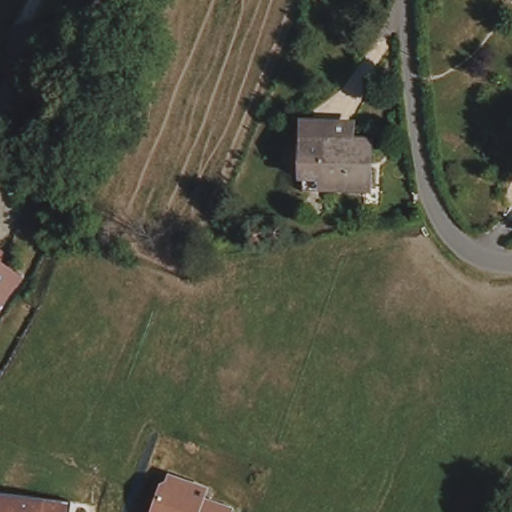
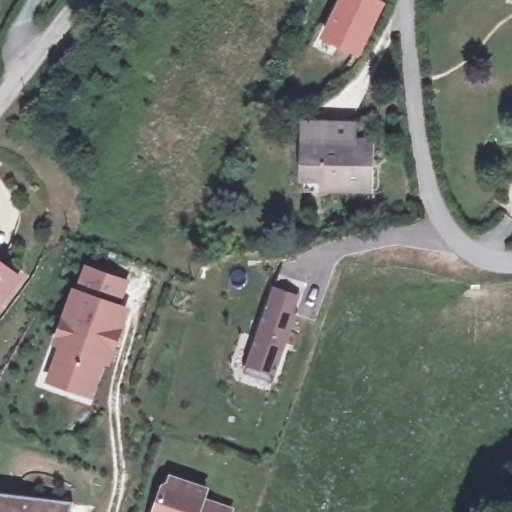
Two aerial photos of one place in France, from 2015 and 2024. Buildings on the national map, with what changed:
new [(386,3),(360,56),(320,37),(339,0),(379,0),(386,3)]
unchanged [(366,190),(328,188),(328,195),(304,194),(306,147),(308,128),(354,131),(354,148),(368,148),(366,190)]
unchanged [(0,260),(0,258),(1,259),(0,260)]
new [(130,281),(121,305),(129,309),(109,365),(106,364),(93,399),(46,382),(58,348),(51,345),(72,287),(78,290),(85,265),(130,281)]
unchanged [(0,270),(15,281),(0,302),(0,270)]
new [(301,295),(274,381),(245,371),(273,285),(301,295)]
unchanged [(208,498),(235,509),(234,512),(152,512),(161,484),(167,481),(169,473),(211,488),(208,498)]
unchanged [(71,512),(0,512),(0,493),(73,501),(71,512)]

